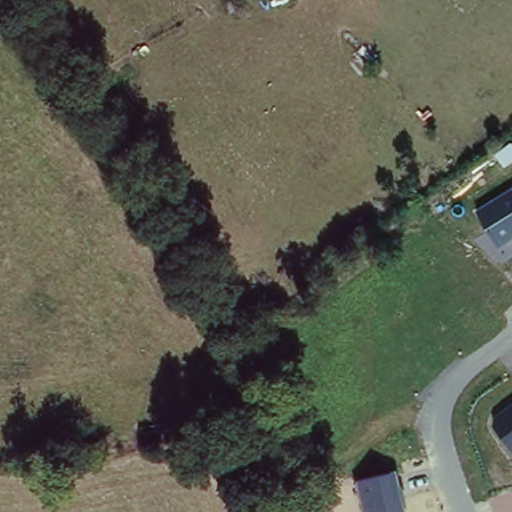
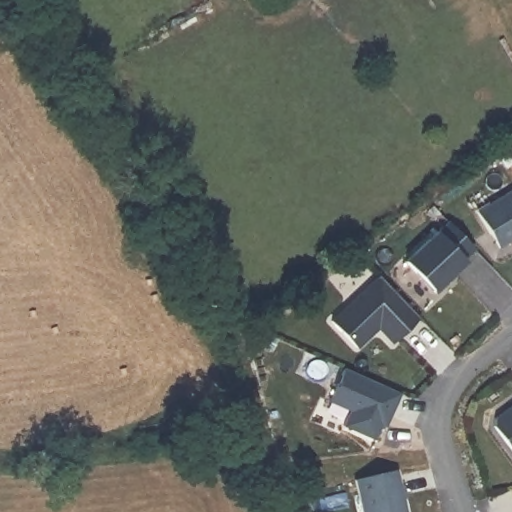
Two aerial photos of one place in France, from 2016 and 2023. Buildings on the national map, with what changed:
unchanged [(512,191),(512,240),(500,247),(477,211),(512,191)]
new [(475,249),(464,259),(465,261),(436,291),(405,259),(436,230),(438,231),(448,220),(475,249)]
new [(382,275),(420,315),(393,340),(378,325),(357,345),(334,321),(382,275)]
new [(348,365),(403,394),(385,426),(381,424),(373,439),(343,423),(351,408),(330,397),(348,365)]
unchanged [(512,406),(512,453),(511,454),(489,423),(512,406)]
unchanged [(398,472),(406,512),(362,512),(356,482),(398,472)]

